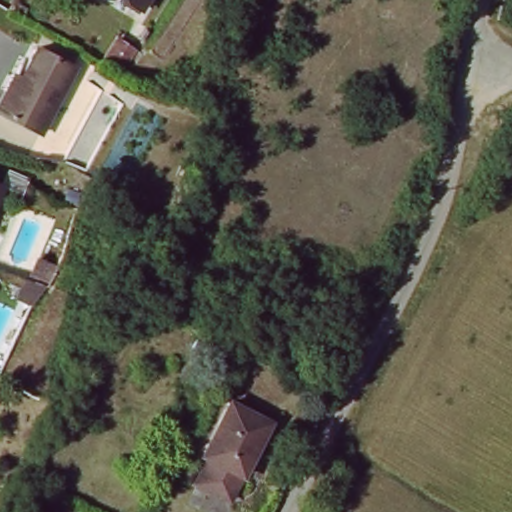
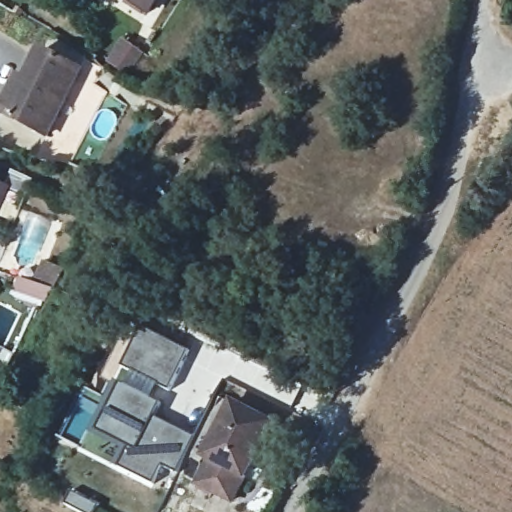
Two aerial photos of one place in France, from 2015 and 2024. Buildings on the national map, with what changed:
unchanged [(138,0),(153,0),(149,6),(138,0)]
unchanged [(55,125),(10,100),(30,64),(40,70),(59,40),(92,57),(55,125)]
unchanged [(135,79),(110,67),(128,41),(150,52),(135,79)]
unchanged [(0,200),(0,183),(6,186),(0,200)]
new [(42,258),(61,267),(42,310),(11,296),(21,275),(32,281),(42,258)]
new [(199,346),(165,413),(203,434),(181,474),(169,466),(156,487),(89,447),(154,324),(199,346)]
unchanged [(211,492),(195,484),(208,458),(204,456),(233,402),(271,425),(236,491),(230,502),(211,492)]

